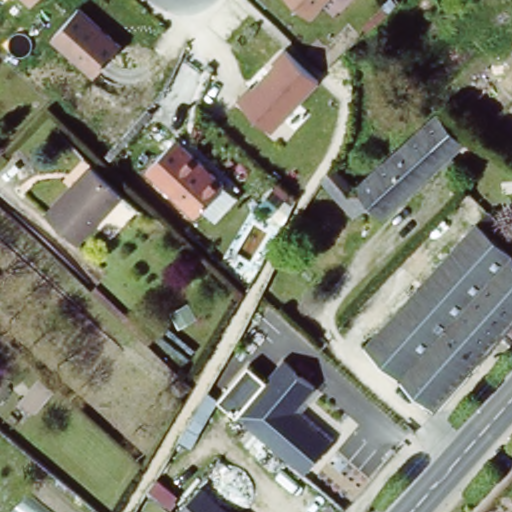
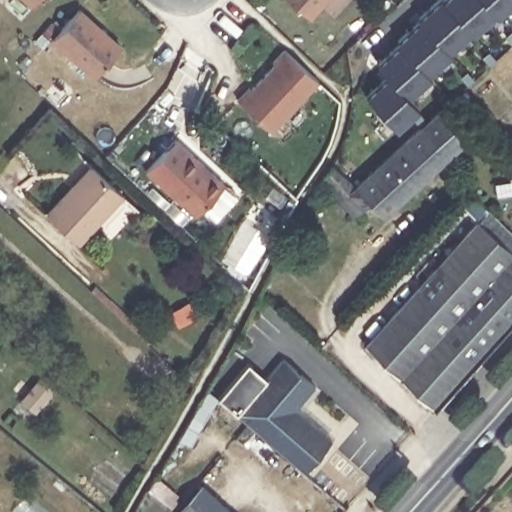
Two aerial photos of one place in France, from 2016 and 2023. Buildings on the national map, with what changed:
unchanged [(32,6),(26,0),(38,0),(32,6)]
unchanged [(312,20),(290,0),(330,0),(312,20)]
new [(435,0),(439,0),(467,32),(445,52),(416,21),(415,19),(435,0)]
new [(492,14),(470,35),(467,32),(439,0),(480,0),(492,14)]
new [(495,17),(492,14),(480,0),(512,0),(512,2),(495,17)]
unchanged [(80,7),(122,45),(94,78),(51,40),(80,7)]
new [(416,21),(445,52),(447,55),(425,75),(396,44),(394,41),(416,21)]
new [(396,44),(425,75),(427,78),(407,99),(385,76),(374,65),(396,44)]
unchanged [(285,50),(320,82),(274,133),(237,100),(285,50)]
new [(385,76),(407,99),(418,110),(395,131),(365,97),(385,76)]
unchanged [(439,112),(466,141),(461,146),(470,155),(451,175),(441,165),(385,219),(370,204),(355,219),(322,183),(325,177),(330,169),(355,188),(439,112)]
unchanged [(177,139),(227,185),(196,219),(146,172),(177,139)]
unchanged [(492,158),(499,150),(512,161),(512,177),(492,158)]
unchanged [(82,241),(52,213),(95,165),(126,194),(82,241)]
unchanged [(512,228),(512,321),(437,406),(366,343),(488,205),(512,228)]
unchanged [(313,386),(293,412),(330,442),(305,472),(237,416),(216,401),(247,365),(267,381),(281,360),(313,386)]
unchanged [(23,407),(43,382),(56,395),(37,418),(23,407)]
unchanged [(233,512),(185,512),(205,489),(233,512)]

